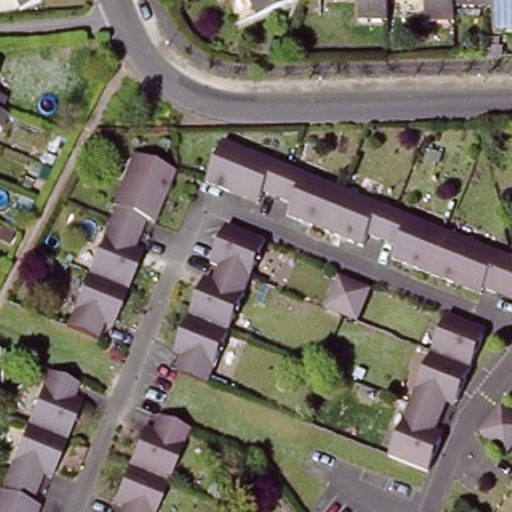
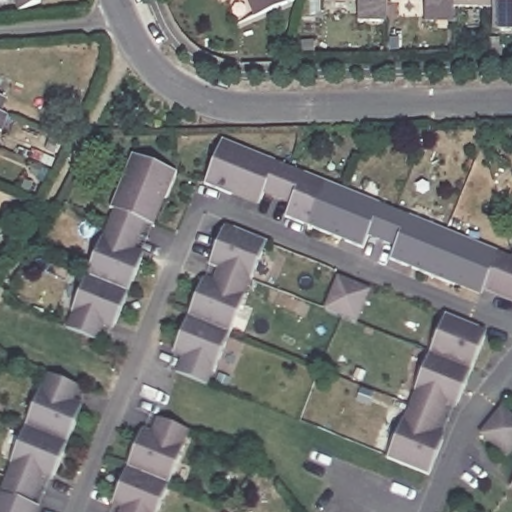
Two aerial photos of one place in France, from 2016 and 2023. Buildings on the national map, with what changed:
unchanged [(45,5),(22,14),(16,0),(43,0),(45,5)]
unchanged [(293,5),(255,21),(245,0),(291,0),(293,5)]
unchanged [(386,22),(357,21),(357,0),(386,0),(386,22)]
unchanged [(453,21),(425,22),(425,0),(453,0),(453,6),(453,21)]
unchanged [(512,30),(492,30),(491,7),(453,6),(453,0),(512,0),(512,30)]
unchanged [(6,101),(0,115),(0,98),(6,101)]
unchanged [(232,194),(209,184),(226,145),(289,170),(277,200),(263,194),(262,199),(259,204),(232,194)]
unchanged [(148,229),(142,244),(110,231),(117,216),(114,215),(135,163),(177,180),(168,205),(157,232),(148,229)]
unchanged [(341,190),(324,230),(288,216),(293,206),(277,200),(289,170),(341,190)]
unchanged [(393,211),(380,241),(366,235),(361,245),(324,230),(341,190),(393,211)]
unchanged [(393,258),(397,247),(380,241),(393,211),(447,232),(430,273),(393,258)]
unchanged [(225,234),(227,228),(235,230),(266,242),(252,278),(221,266),(213,262),(225,234)]
unchanged [(142,244),(137,258),(145,261),(142,267),(130,297),(88,280),(110,231),(142,244)]
unchanged [(430,273),(447,232),(512,258),(512,260),(512,298),(485,288),(483,293),(454,283),(430,273)]
unchanged [(193,312),(205,285),(208,279),(215,282),(221,266),(252,278),(231,328),(193,312)]
unchanged [(360,320),(343,313),(328,307),(339,277),(355,283),(370,289),(360,320)]
unchanged [(105,331),(100,345),(68,332),(88,280),(130,297),(117,327),(114,335),(105,331)]
unchanged [(180,345),(193,312),(231,328),(210,380),(180,366),(185,354),(177,351),(180,345)]
unchanged [(478,328),(486,331),(485,338),(472,368),(432,352),(447,315),(478,328)]
unchanged [(449,403),(444,415),(413,401),(432,352),(472,368),(460,400),(457,406),(449,403)]
unchanged [(76,387),(72,400),(79,404),(77,410),(65,440),(25,424),(45,374),(76,387)]
unchanged [(438,430),(447,433),(444,439),(432,470),(392,453),(413,401),(444,415),(438,430)]
unchanged [(512,421),(512,448),(507,455),(482,435),(492,423),(501,412),(512,421)]
unchanged [(147,435),(156,437),(162,423),(191,436),(170,487),(133,470),(145,440),(147,435)]
unchanged [(41,476),(35,490),(2,476),(25,424),(65,440),(51,473),(47,480),(41,476)]
unchanged [(133,470),(170,487),(160,512),(124,512),(117,510),(120,504),(133,470)]
unchanged [(0,512),(0,482),(2,476),(35,490),(29,505),(37,509),(35,512),(0,512)]

